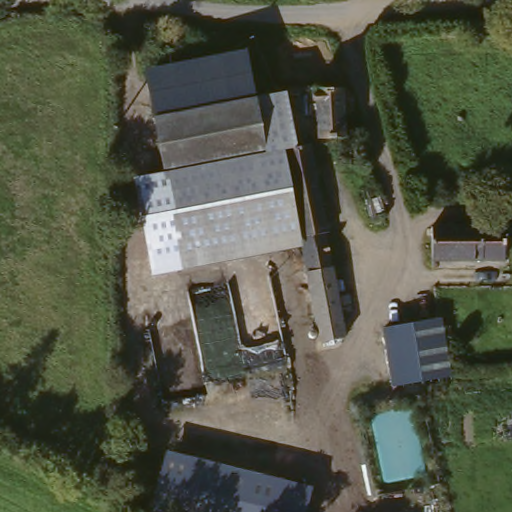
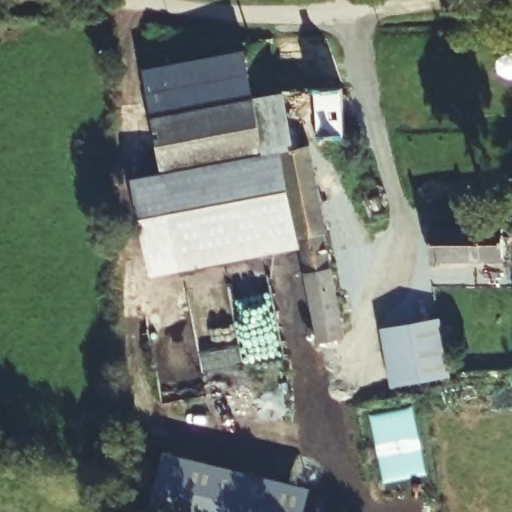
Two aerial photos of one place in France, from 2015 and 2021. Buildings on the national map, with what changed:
unchanged [(239,50),(247,95),(144,120),(137,70),(239,50)]
unchanged [(344,331),(313,336),(293,255),(173,275),(144,120),(277,88),(292,152),(306,147),(344,331)]
unchanged [(316,142),(308,92),(345,94),(347,141),(316,142)]
unchanged [(371,224),(364,202),(378,197),(385,219),(371,224)]
unchanged [(431,260),(430,228),(503,227),(503,260),(431,260)]
unchanged [(437,322),(446,372),(389,382),(380,331),(437,322)]
unchanged [(303,512),(148,512),(165,450),(309,486),(303,512)]

